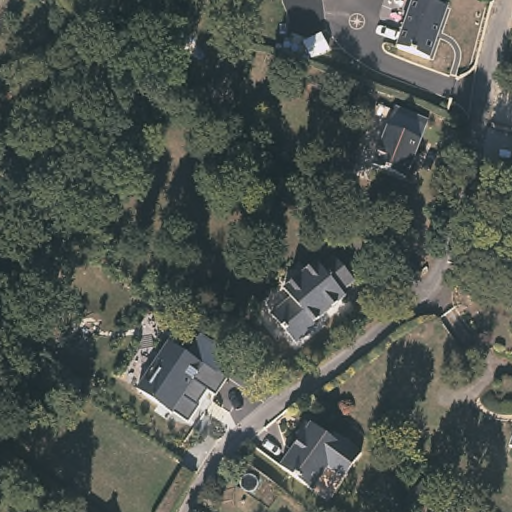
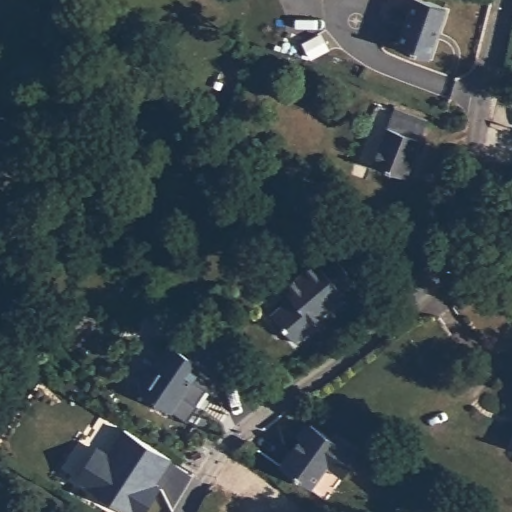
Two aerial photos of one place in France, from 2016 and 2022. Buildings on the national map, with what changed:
unchanged [(447,6),(429,57),(397,46),(405,20),(413,0),(428,0),(447,6)]
unchanged [(349,74),(338,104),(292,89),(302,58),(349,74)]
unchanged [(425,124),(404,176),(374,163),(394,111),(425,124)]
unchanged [(352,276),(339,287),(343,291),(313,318),(315,322),(296,339),(271,310),(289,294),(282,285),(314,257),(318,263),(331,252),(352,276)]
unchanged [(189,353),(203,335),(229,353),(218,370),(227,376),(216,392),(208,388),(188,420),(137,391),(168,342),(189,353)]
unchanged [(334,432),(361,451),(343,476),(327,464),(310,487),(279,463),(302,434),(312,421),(315,424),(331,436),(334,432)]
new [(109,450),(124,427),(173,459),(157,482),(162,485),(144,512),(128,512),(77,479),(98,444),(109,450)]
unchanged [(509,444),(512,436),(512,446),(509,444)]
unchanged [(461,512),(438,512),(446,500),(461,512)]

